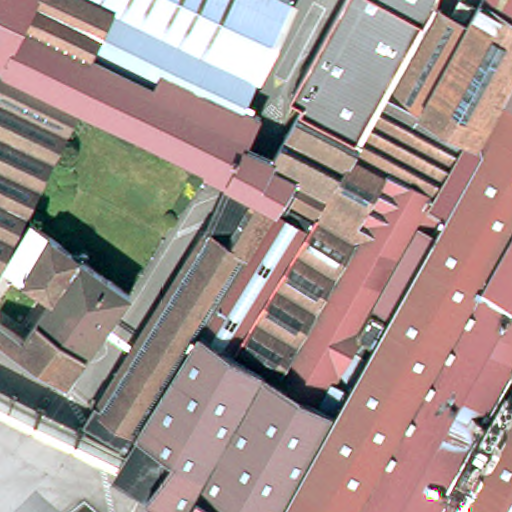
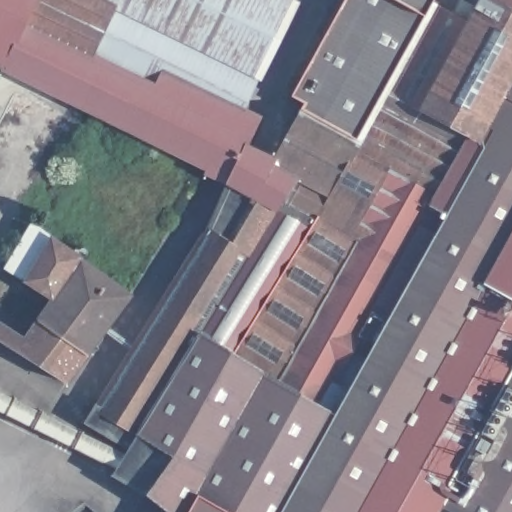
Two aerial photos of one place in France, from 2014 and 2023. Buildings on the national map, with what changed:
unchanged [(258,71),(245,99),(267,111),(254,138),(252,137),(232,178),(82,102),(5,65),(0,63),(0,0),(293,0),(258,71)]
unchanged [(120,466),(130,450),(134,444),(90,416),(210,223),(227,234),(278,150),(312,90),(300,83),(347,0),(436,0),(435,2),(467,20),(478,0),(499,0),(512,7),(512,512),(176,512),(119,470),(120,466)]
unchanged [(512,7),(499,0),(512,0),(512,7)]
demolished [(0,269),(0,75),(5,65),(82,102),(0,269)]
unchanged [(252,137),(254,138),(278,150),(227,234),(210,223),(232,178),(252,137)]
unchanged [(66,377),(0,336),(0,321),(2,318),(26,334),(56,291),(9,262),(34,222),(132,291),(66,377)]
unchanged [(130,450),(120,466),(0,407),(0,386),(130,450)]

